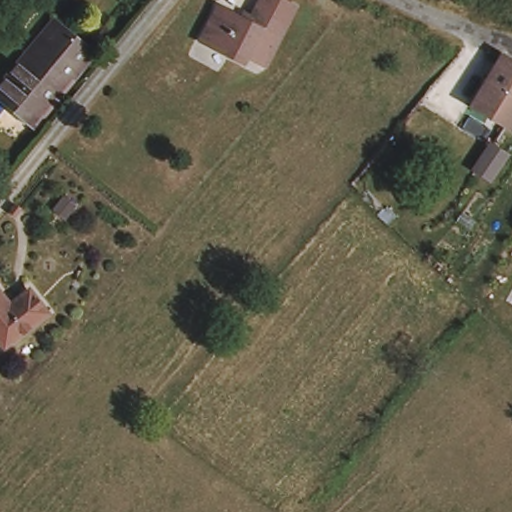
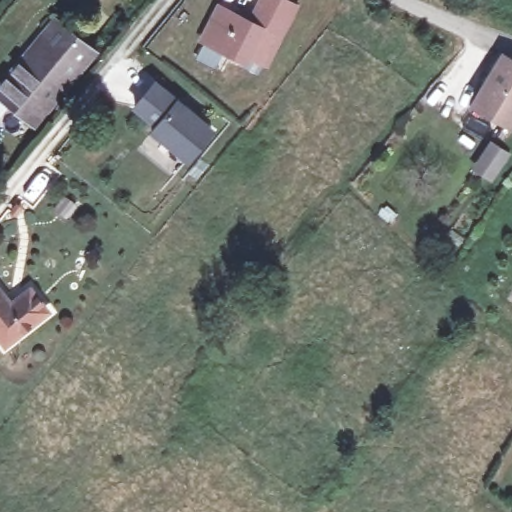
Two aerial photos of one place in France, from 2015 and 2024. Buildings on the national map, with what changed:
unchanged [(250,12),(257,0),(284,0),(292,4),(262,65),(242,55),(239,60),(195,40),(214,5),(238,17),(242,7),(250,12)]
unchanged [(0,97),(0,75),(47,20),(84,55),(27,121),(0,97)]
unchanged [(508,126),(470,105),(499,55),(511,61),(512,61),(512,120),(508,126)]
new [(158,81),(216,129),(192,157),(157,129),(162,123),(139,105),(158,81)]
unchanged [(490,161),(501,142),(512,150),(512,160),(510,162),(505,172),(490,161)]
unchanged [(28,288),(45,311),(3,344),(0,340),(0,293),(9,303),(28,288)]

